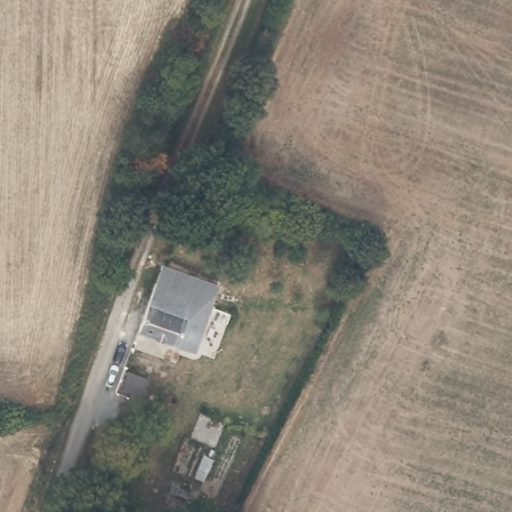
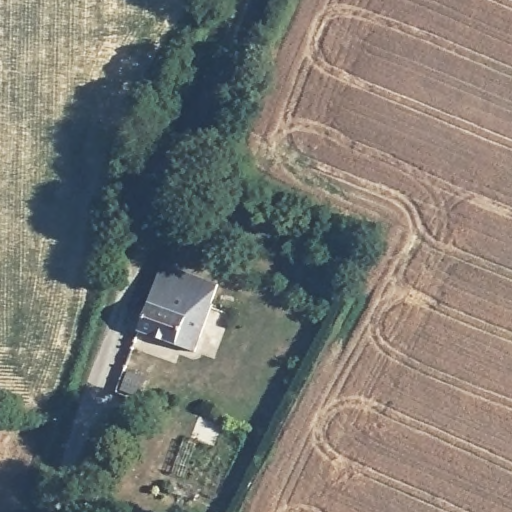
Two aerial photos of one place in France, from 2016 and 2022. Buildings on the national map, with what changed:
unchanged [(163,278),(210,296),(202,314),(212,318),(194,365),(137,343),(156,297),(163,278)]

